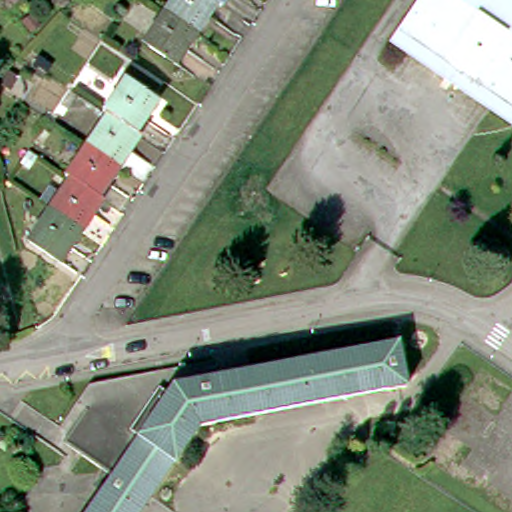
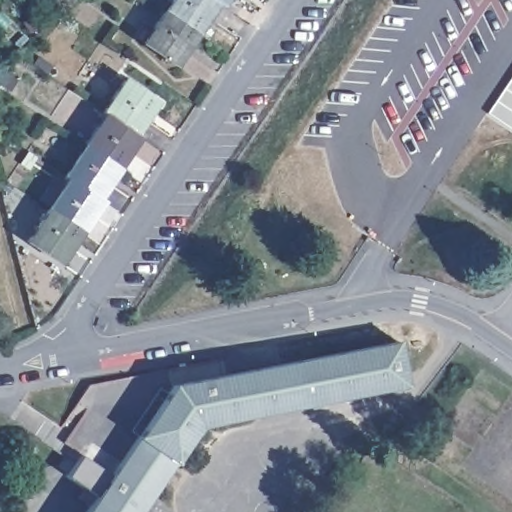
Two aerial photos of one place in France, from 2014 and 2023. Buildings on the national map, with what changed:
unchanged [(198,33),(165,11),(173,0),(216,0),(219,2),(198,33)]
unchanged [(219,2),(216,0),(226,0),(222,5),(219,2)]
demolished [(511,120),(394,40),(421,0),(512,0),(512,119),(511,120)]
unchanged [(198,33),(177,64),(145,42),(165,11),(198,33)]
unchanged [(120,76),(153,97),(131,129),(103,110),(98,106),(120,76)]
new [(512,79),(512,129),(489,114),(512,79)]
unchanged [(113,162),(82,141),(103,110),(131,129),(135,130),(113,162)]
unchanged [(61,172),(82,141),(113,162),(93,194),(65,175),(61,172)]
unchanged [(43,206),(65,175),(93,194),(97,196),(76,228),(43,206)]
unchanged [(55,258),(22,238),(43,206),(76,228),(55,258)]
unchanged [(396,342),(405,387),(196,427),(138,512),(81,512),(108,473),(131,439),(169,384),(396,342)]
unchanged [(93,384),(142,373),(169,384),(131,439),(82,406),(93,384)]
unchanged [(108,473),(59,440),(82,406),(131,439),(108,473)]

